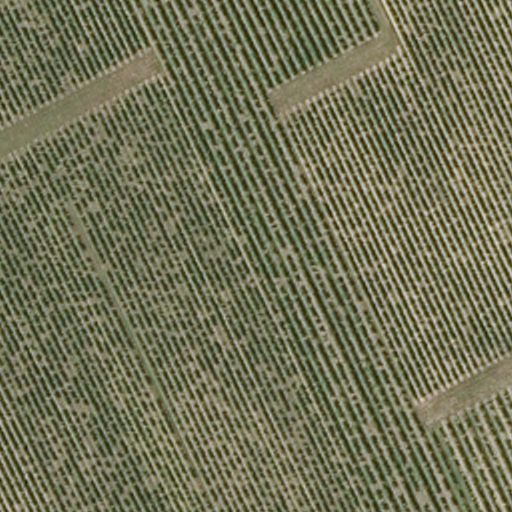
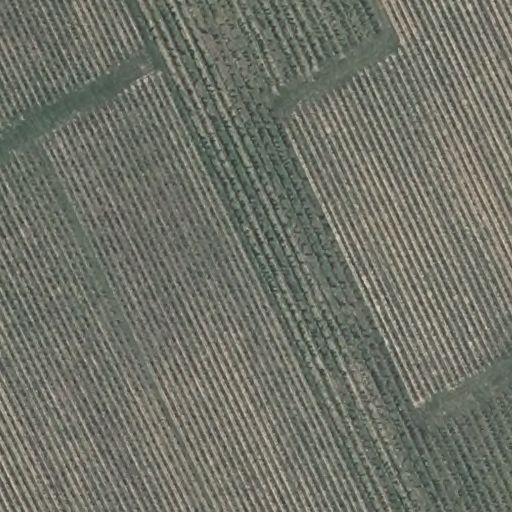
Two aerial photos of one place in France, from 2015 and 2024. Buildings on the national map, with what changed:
[]

